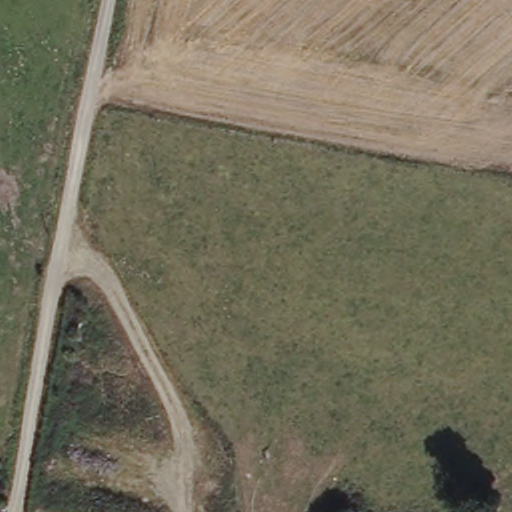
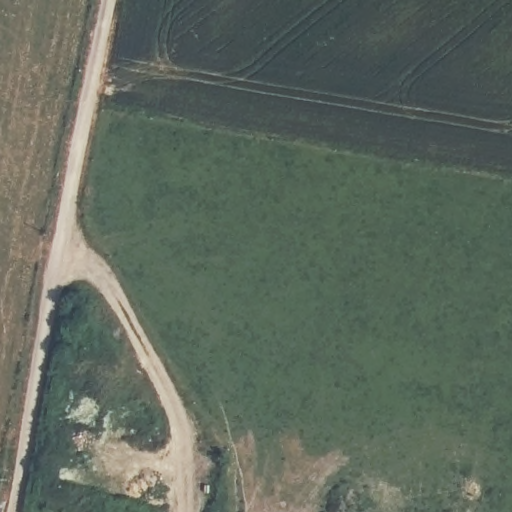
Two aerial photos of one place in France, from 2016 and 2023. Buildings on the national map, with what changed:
unchanged [(0,509),(0,484),(6,486),(0,509)]

